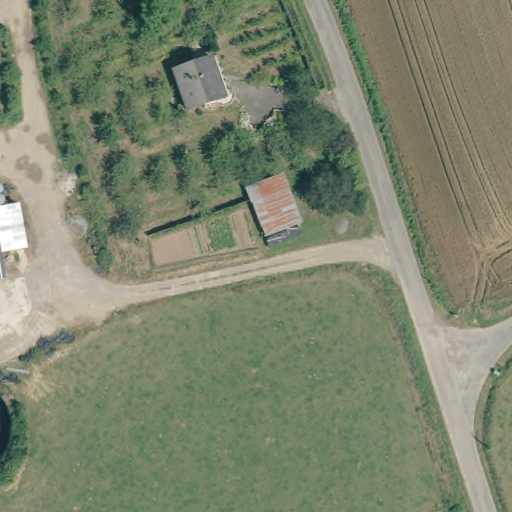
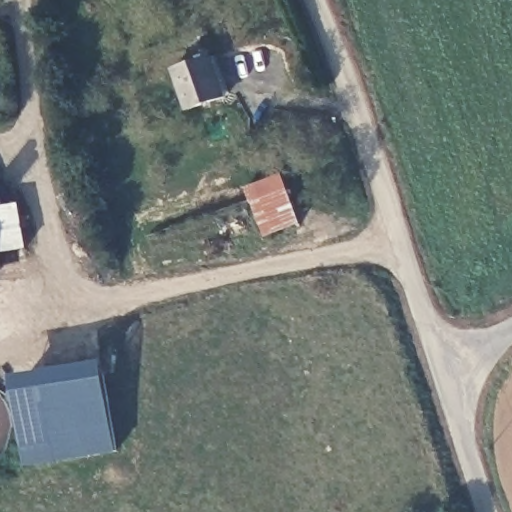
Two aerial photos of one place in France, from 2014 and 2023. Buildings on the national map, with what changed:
unchanged [(176,66),(212,53),(226,92),(191,105),(176,66)]
unchanged [(263,231),(246,182),(282,170),(301,216),(263,231)]
unchanged [(0,217),(0,211),(24,209),(32,254),(7,257),(0,217)]
unchanged [(7,257),(11,283),(0,284),(0,217),(7,257)]
new [(117,453),(25,468),(11,376),(103,362),(117,453)]

